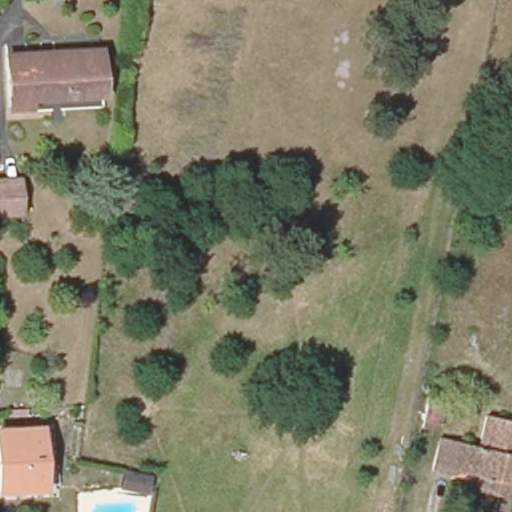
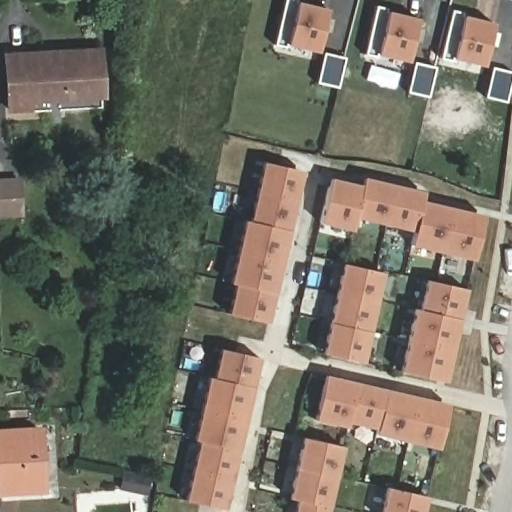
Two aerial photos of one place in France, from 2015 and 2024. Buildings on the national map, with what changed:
new [(326,17),(334,19),(330,34),(323,32),(317,52),(286,46),(275,43),(287,0),(299,0),(298,3),(328,8),(326,17)]
new [(417,27),(423,29),(420,43),(415,42),(408,58),(382,53),(375,60),(363,56),(375,5),(390,8),(390,13),(416,18),(417,27)]
new [(491,32),(500,33),(497,48),(488,46),(482,66),(461,61),(462,55),(456,54),(452,60),(438,57),(451,10),(467,12),(466,16),(493,22),(491,32)]
unchanged [(100,49),(103,97),(30,101),(30,109),(9,110),(5,55),(100,49)]
new [(320,53),(340,57),(333,84),(313,81),(320,53)]
new [(411,62),(429,66),(422,96),(404,89),(411,62)]
new [(486,68),(505,71),(499,98),(480,94),(486,68)]
new [(293,179),(301,181),(291,223),(283,222),(279,242),(286,244),(278,280),(271,279),(266,299),(273,301),(270,315),(263,314),(261,322),(229,314),(236,284),(231,283),(245,221),(251,222),(263,161),(295,168),(293,179)]
unchanged [(0,216),(0,180),(21,179),(24,214),(0,216)]
new [(411,244),(415,231),(356,218),(353,230),(321,223),(330,187),(342,190),(344,182),(373,189),(375,181),(412,189),(410,198),(422,201),(420,210),(433,213),(435,204),(471,212),(470,221),(482,224),(474,260),(411,244)]
new [(361,362),(331,355),(334,346),(325,344),(341,276),(350,278),(353,266),(383,273),(361,362)]
new [(461,309),(453,308),(448,332),(455,333),(447,369),(441,367),(438,380),(392,369),(407,308),(412,309),(418,279),(465,290),(461,309)]
new [(227,507),(186,497),(198,443),(194,443),(209,378),(213,379),(219,348),(261,358),(227,507)]
new [(322,382),(337,386),(339,378),(378,387),(376,394),(399,401),(401,392),(436,401),(435,409),(447,411),(439,449),(376,434),(377,429),(347,421),(346,427),(315,419),(322,382)]
demolished [(480,451),(487,420),(512,426),(512,473),(512,495),(507,493),(508,487),(477,480),(453,474),(460,447),(480,451)]
unchanged [(0,432),(39,430),(42,488),(0,491),(0,432)]
new [(293,512),(296,499),(286,498),(302,438),(342,447),(328,512),(293,512)]
unchanged [(151,478),(148,492),(121,487),(125,473),(151,478)]
new [(379,512),(386,487),(426,494),(423,512),(379,512)]

